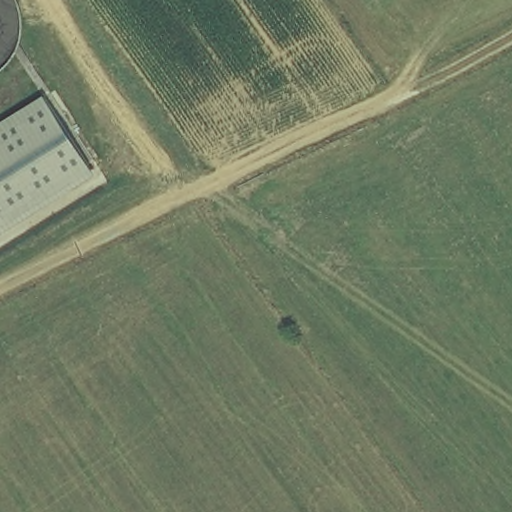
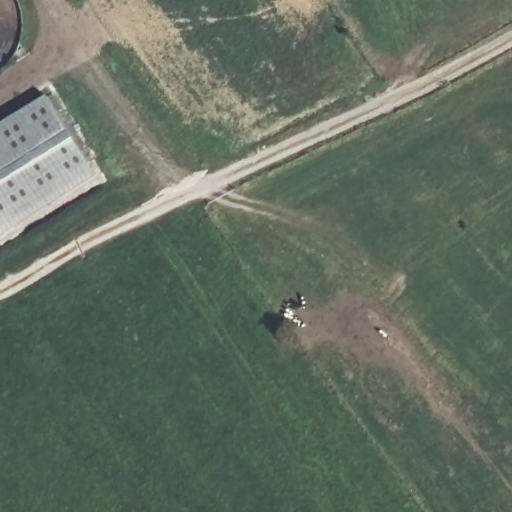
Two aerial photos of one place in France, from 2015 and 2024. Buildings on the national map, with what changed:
unchanged [(95,165),(0,225),(0,131),(52,98),(95,165)]

